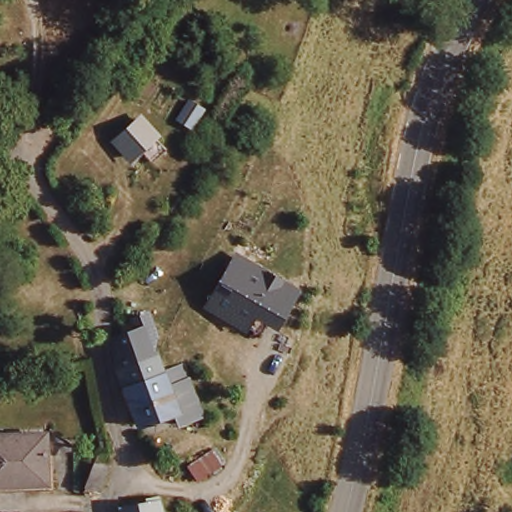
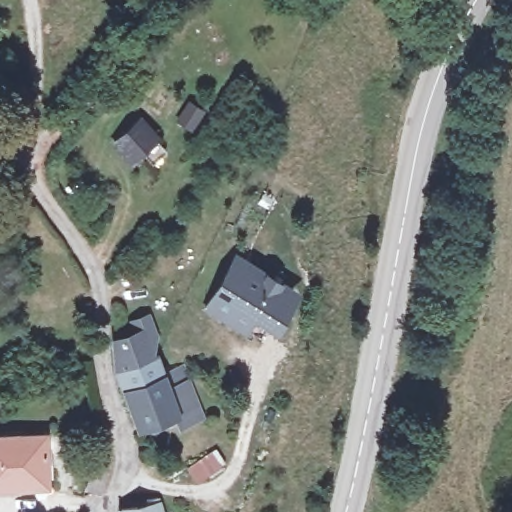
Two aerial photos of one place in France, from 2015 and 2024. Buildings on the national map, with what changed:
unchanged [(209,110),(198,129),(180,117),(190,99),(209,110)]
unchanged [(135,160),(131,155),(117,139),(138,119),(153,135),(157,140),(135,160)]
unchanged [(10,259),(2,264),(0,262),(0,247),(1,246),(10,259)]
unchanged [(245,328),(209,307),(236,259),(292,292),(282,309),(277,307),(260,337),(245,328)]
unchanged [(129,353),(124,340),(143,334),(147,346),(154,343),(159,355),(161,354),(168,374),(130,387),(124,368),(127,366),(122,356),(129,353)]
unchanged [(168,374),(185,367),(187,367),(192,381),(207,417),(185,425),(181,411),(144,424),(130,387),(168,374)]
unchanged [(0,487),(0,437),(44,436),(45,466),(46,486),(34,486),(0,487)]
unchanged [(197,482),(188,468),(191,466),(187,459),(206,447),(210,453),(219,467),(197,482)]
unchanged [(103,470),(96,490),(90,488),(96,468),(103,470)]
unchanged [(147,506),(147,500),(157,497),(161,512),(121,512),(121,511),(147,506)]

